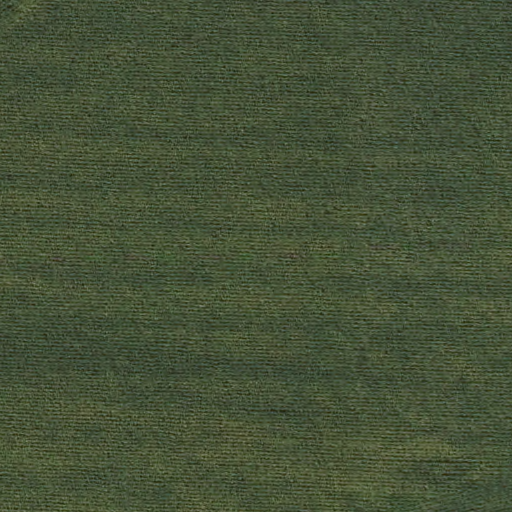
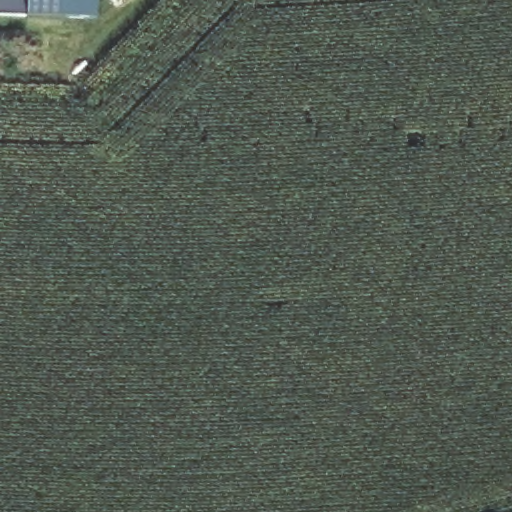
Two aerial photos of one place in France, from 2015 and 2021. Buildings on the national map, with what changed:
new [(0,0),(96,0),(96,19),(0,16),(0,0)]

